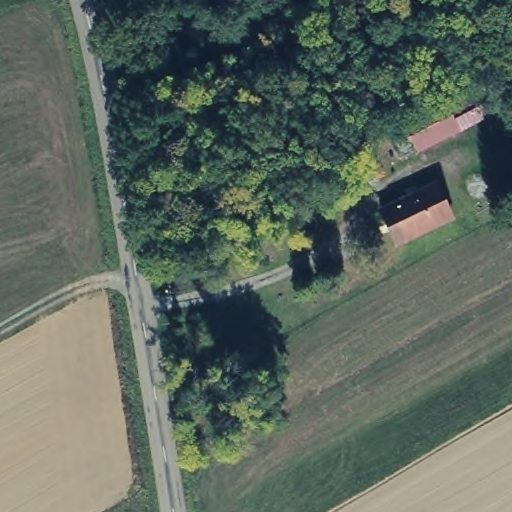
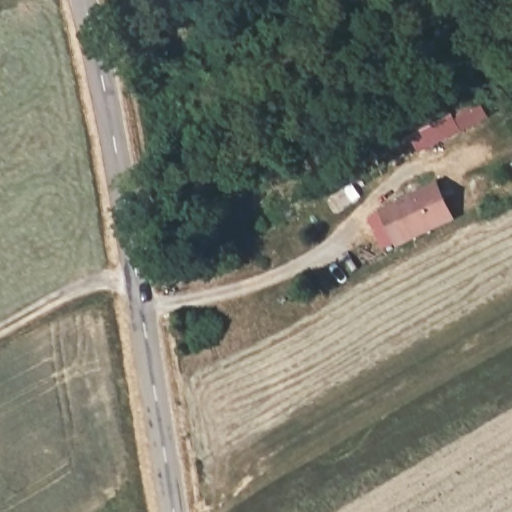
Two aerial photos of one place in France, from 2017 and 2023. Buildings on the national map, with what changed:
unchanged [(436,177),(455,219),(404,241),(387,198),(436,177)]

